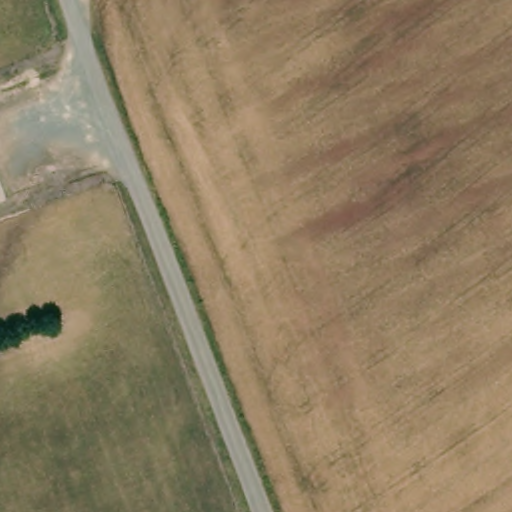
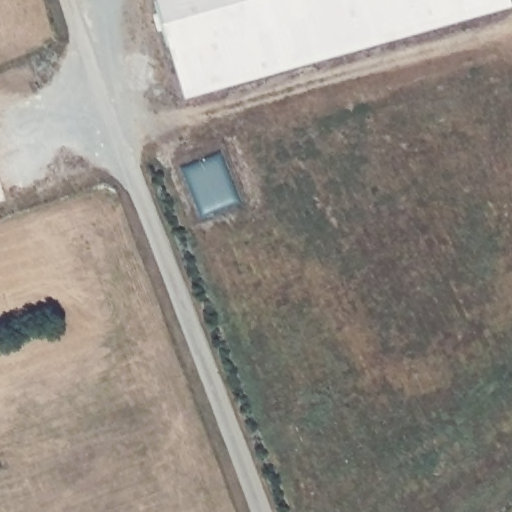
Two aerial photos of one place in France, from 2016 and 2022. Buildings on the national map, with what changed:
new [(512,1),(512,5),(187,98),(159,0),(512,0),(512,1)]

